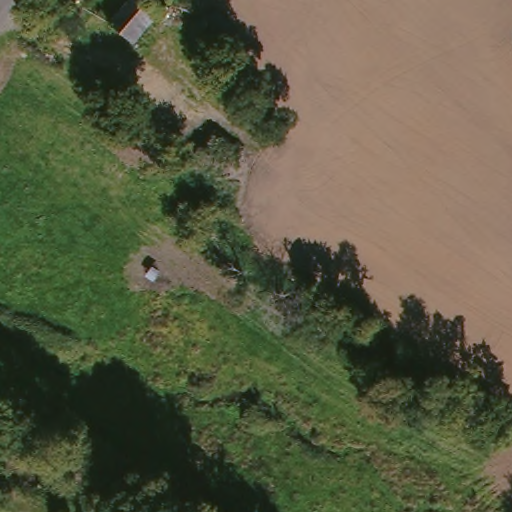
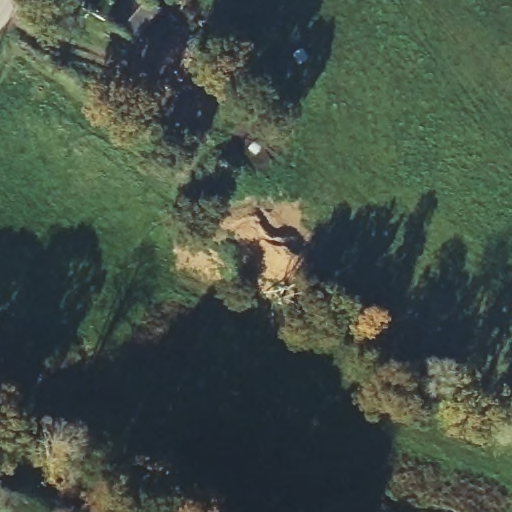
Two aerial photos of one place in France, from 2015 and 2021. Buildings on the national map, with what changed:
unchanged [(173,19),(131,64),(109,44),(130,21),(150,0),(156,0),(173,19)]

